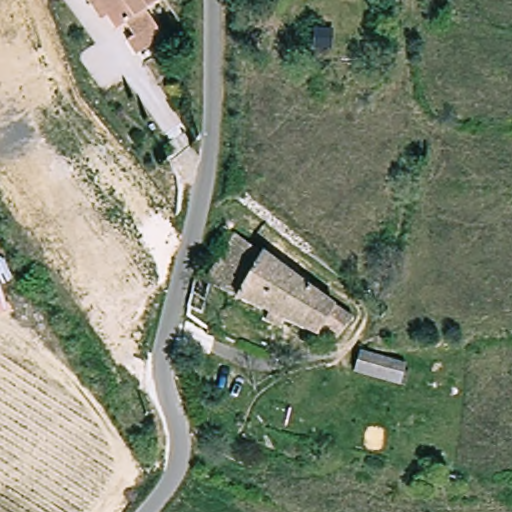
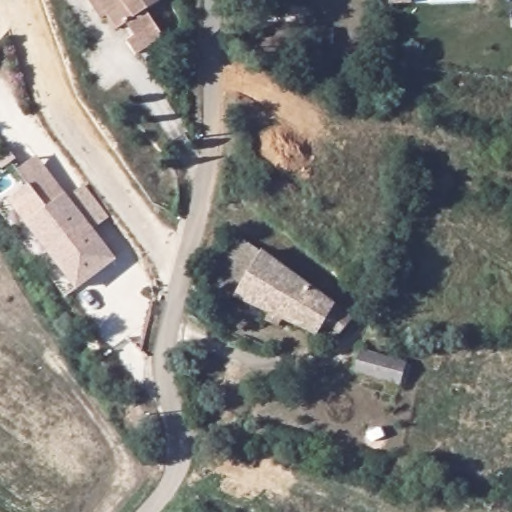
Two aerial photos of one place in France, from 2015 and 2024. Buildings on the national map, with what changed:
unchanged [(137,36),(128,22),(113,31),(92,0),(164,0),(165,0),(150,10),(170,37),(140,56),(131,45),(137,36)]
new [(390,5),(389,0),(412,0),(412,2),(390,5)]
new [(37,156),(66,194),(118,260),(78,291),(27,225),(8,201),(29,185),(18,171),(37,156)]
unchanged [(234,293),(252,260),(344,303),(328,337),(234,293)]
unchanged [(414,363),(406,385),(356,368),(365,348),(414,363)]

